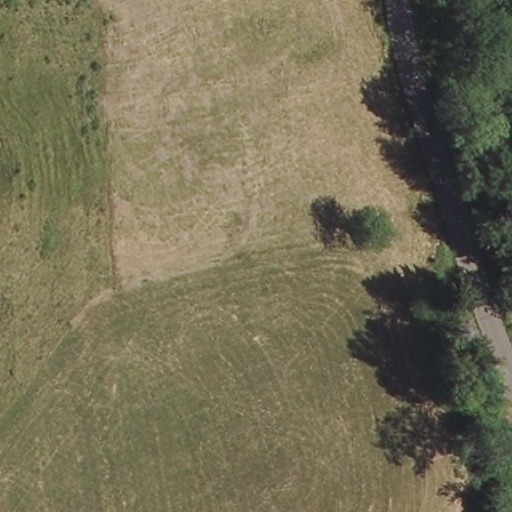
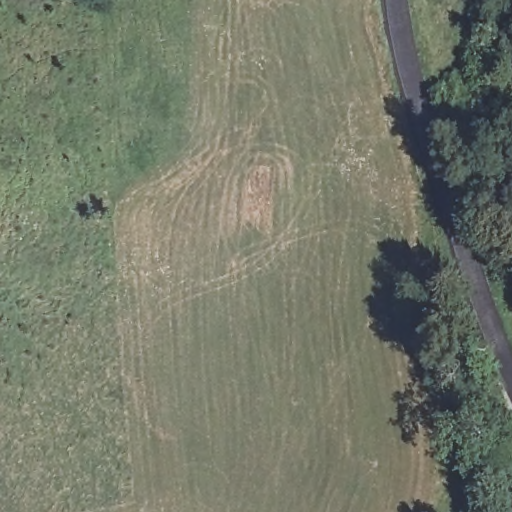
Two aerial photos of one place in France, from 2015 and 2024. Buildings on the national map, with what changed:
unchanged [(400,242),(409,268),(383,277),(375,250),(400,242)]

